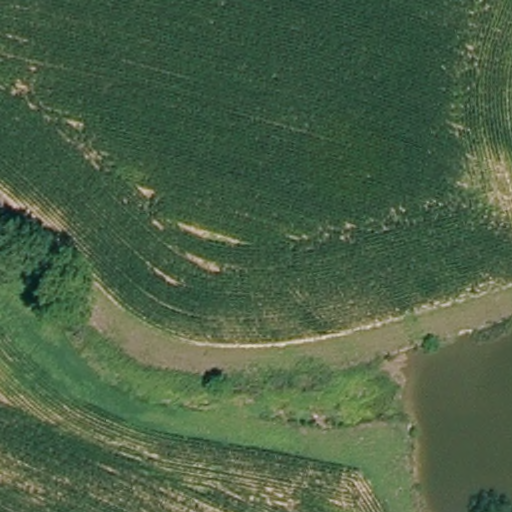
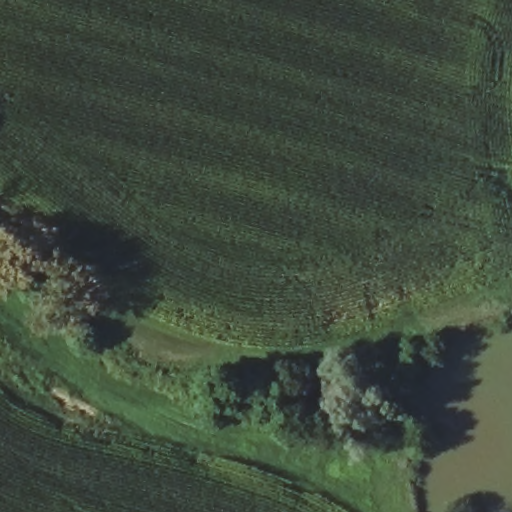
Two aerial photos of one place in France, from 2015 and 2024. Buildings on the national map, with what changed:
[]

